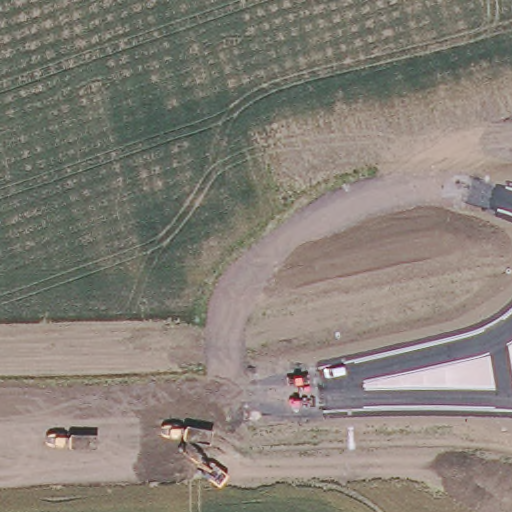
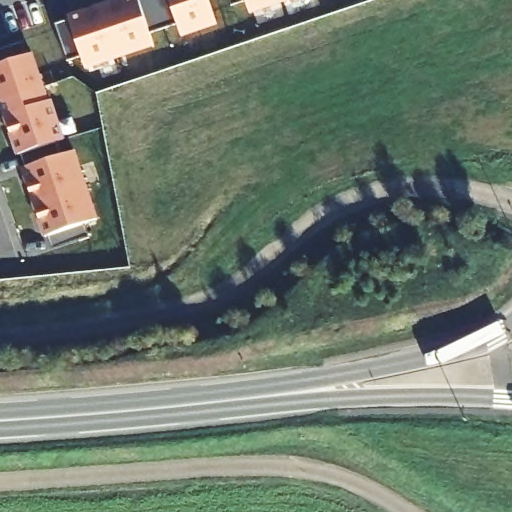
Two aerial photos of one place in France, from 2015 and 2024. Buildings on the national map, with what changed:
new [(70,16),(118,0),(210,0),(218,22),(183,34),(179,23),(151,32),(156,44),(87,67),(83,55),(69,60),(56,23),(70,18),(70,16)]
new [(246,0),(233,4),(231,0),(246,0)]
new [(247,0),(285,0),(252,11),(247,0)]
new [(0,47),(23,39),(28,53),(32,52),(44,86),(39,87),(44,101),(51,99),(65,138),(58,140),(63,153),(75,149),(98,218),(86,221),(91,236),(54,248),(49,234),(47,235),(24,167),(26,166),(22,152),(19,153),(6,114),(0,97),(0,47)]

